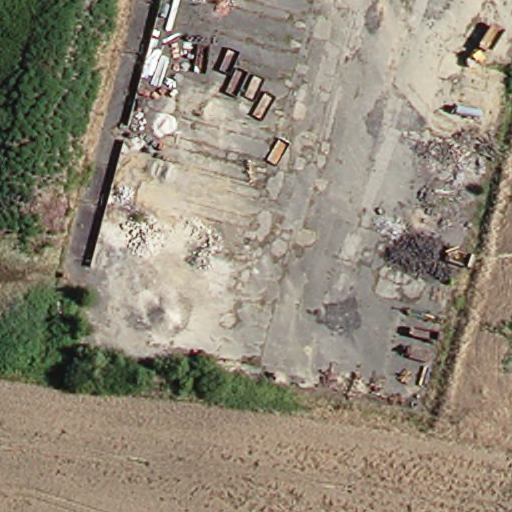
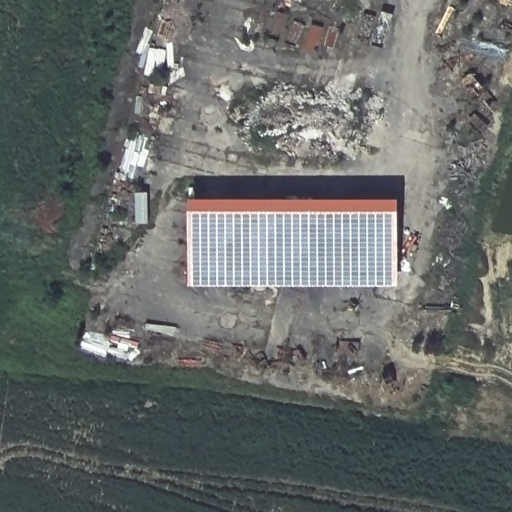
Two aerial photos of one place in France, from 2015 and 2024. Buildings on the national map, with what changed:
new [(189,198),(397,198),(397,285),(189,285),(189,198)]

